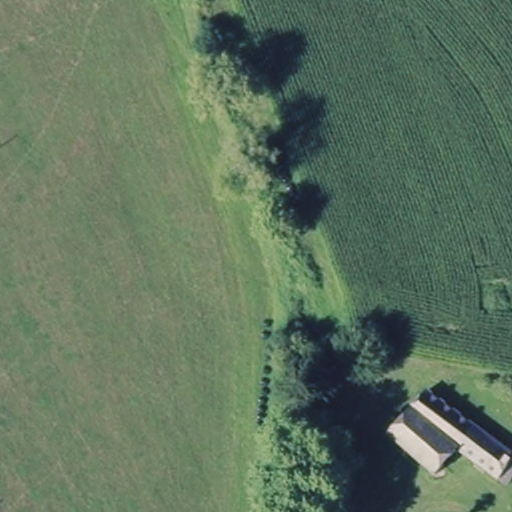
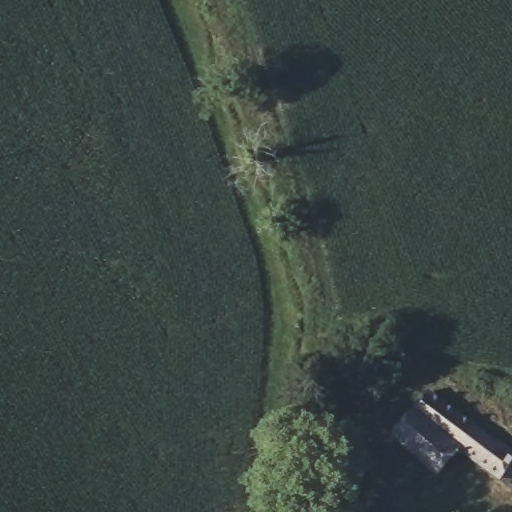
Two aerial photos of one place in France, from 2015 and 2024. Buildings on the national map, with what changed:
unchanged [(512,452),(512,473),(505,481),(457,448),(437,474),(390,438),(426,392),(512,452)]

